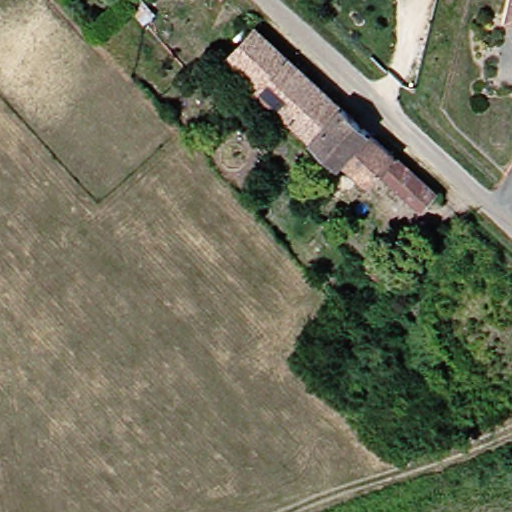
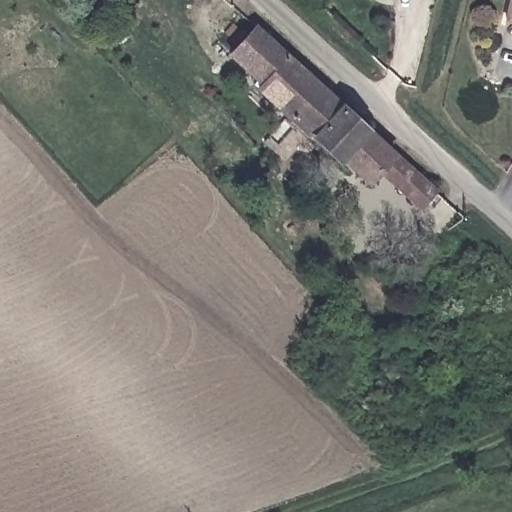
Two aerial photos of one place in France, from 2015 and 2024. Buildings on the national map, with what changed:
unchanged [(512,0),(512,13),(507,11),(511,0),(512,0)]
unchanged [(291,53),(263,82),(232,55),(258,23),(291,53)]
unchanged [(291,53),(404,156),(390,173),(376,188),(343,156),(338,161),(258,88),(263,82),(291,53)]
unchanged [(404,156),(445,192),(429,209),(390,173),(404,156)]

